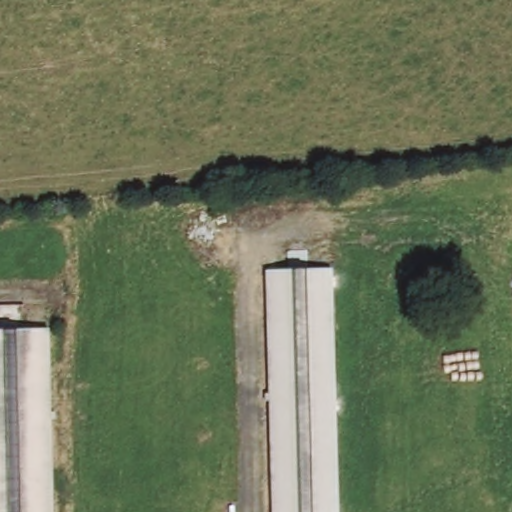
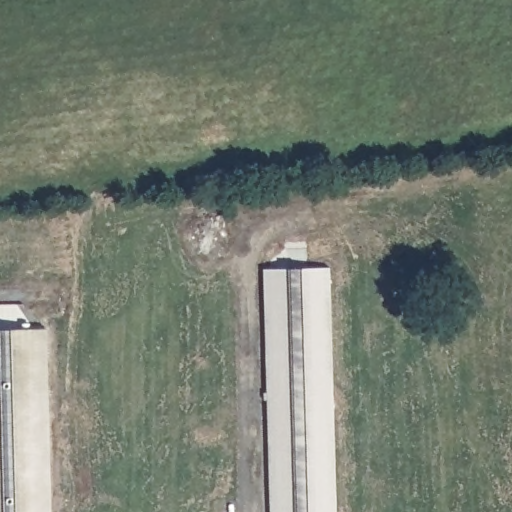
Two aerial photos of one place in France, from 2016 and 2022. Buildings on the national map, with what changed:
unchanged [(329,268),(335,512),(269,512),(264,273),(329,268)]
unchanged [(50,334),(54,487),(54,512),(0,512),(0,334),(50,334)]

